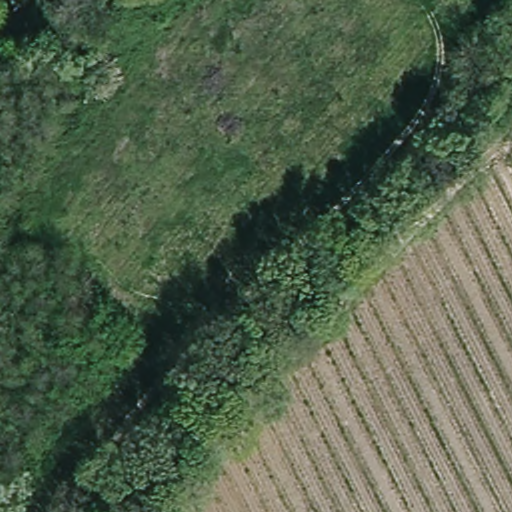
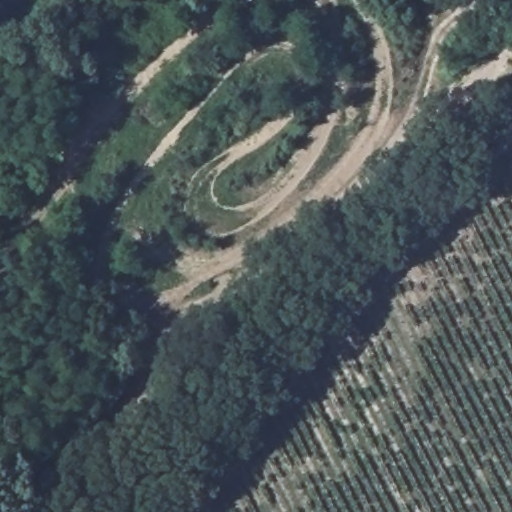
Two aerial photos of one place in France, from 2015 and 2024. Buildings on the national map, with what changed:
[]

